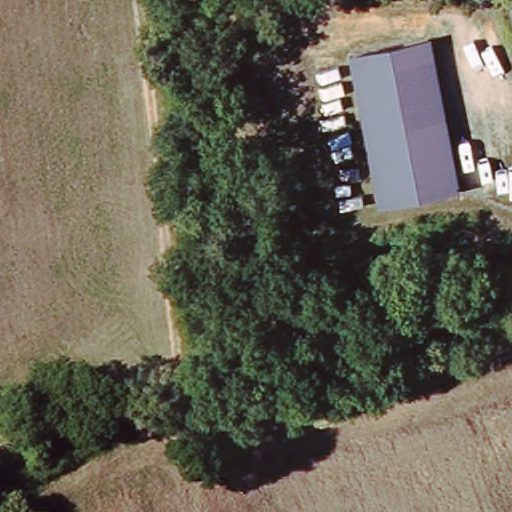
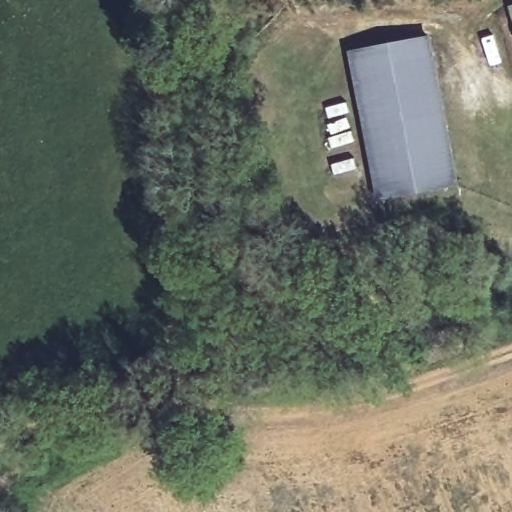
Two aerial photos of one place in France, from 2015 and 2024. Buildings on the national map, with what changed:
unchanged [(466,181),(391,202),(350,57),(425,35),(466,181)]

